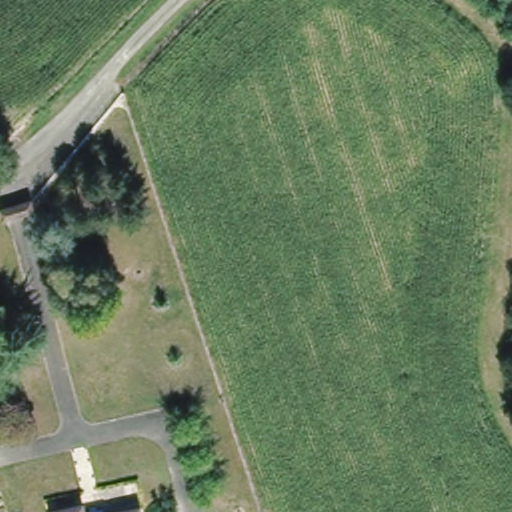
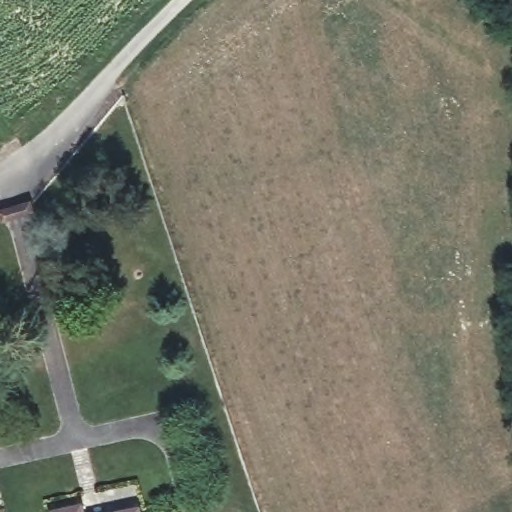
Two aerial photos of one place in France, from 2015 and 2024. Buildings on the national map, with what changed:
unchanged [(47,505),(89,495),(94,512),(49,512),(47,505)]
unchanged [(138,505),(140,512),(102,512),(138,505)]

